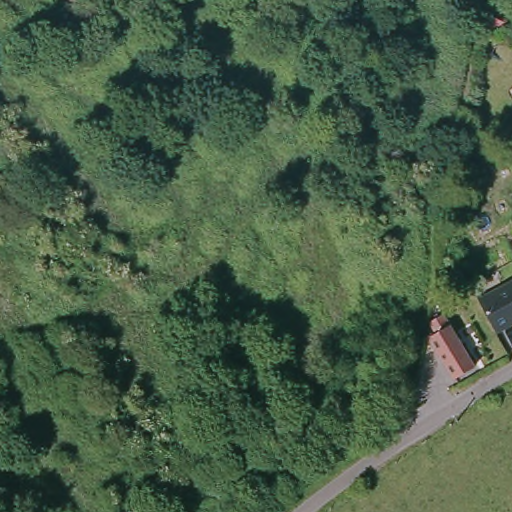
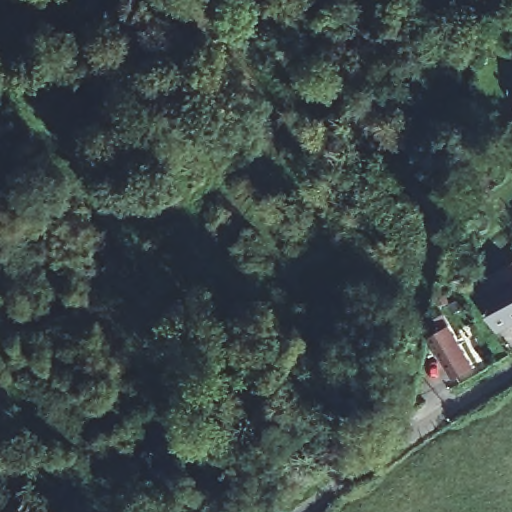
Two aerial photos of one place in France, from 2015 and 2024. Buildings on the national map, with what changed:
unchanged [(506,333),(489,302),(512,290),(512,330),(506,333)]
unchanged [(436,324),(446,318),(480,371),(462,383),(436,342),(441,339),(435,330),(436,324)]

